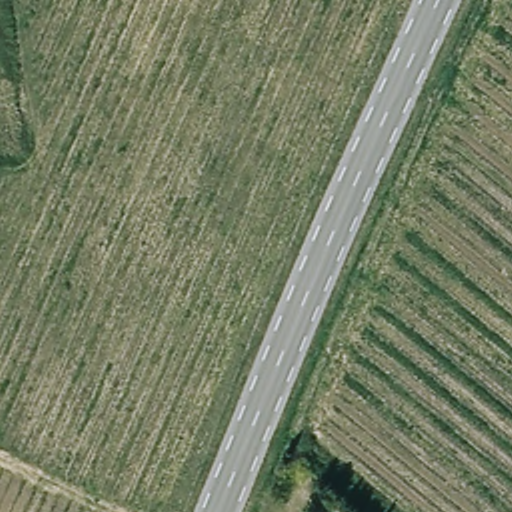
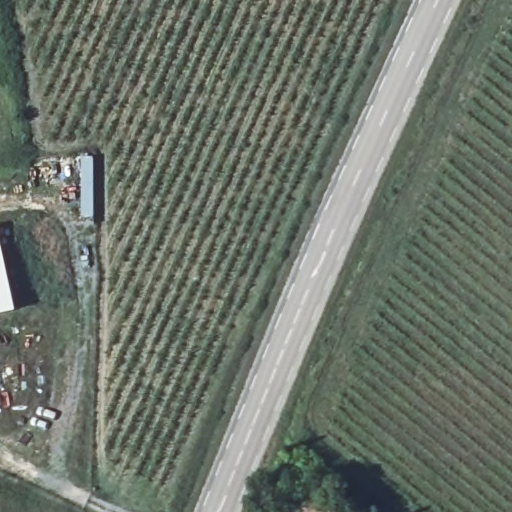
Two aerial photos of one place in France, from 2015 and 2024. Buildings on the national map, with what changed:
new [(0,318),(0,237),(17,314),(0,318)]

